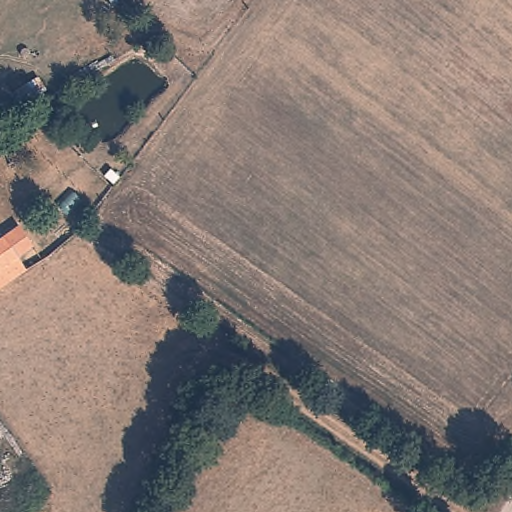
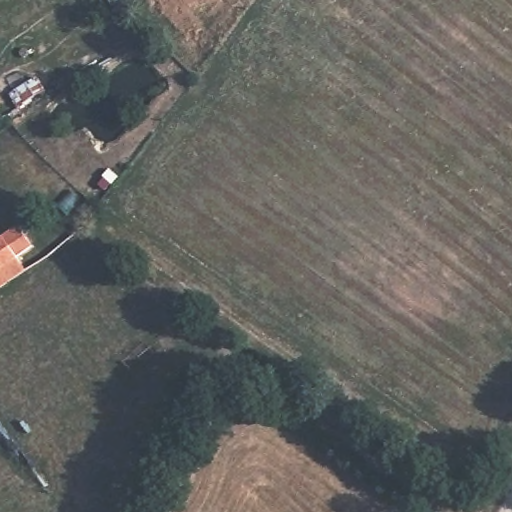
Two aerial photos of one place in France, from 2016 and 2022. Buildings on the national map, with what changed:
unchanged [(34,252),(20,261),(28,271),(0,290),(0,240),(18,228),(34,252)]

